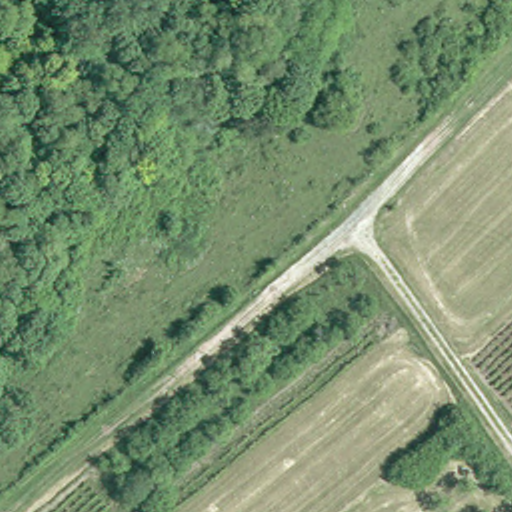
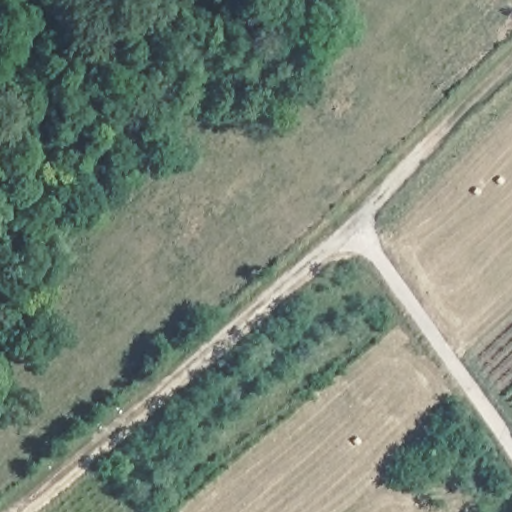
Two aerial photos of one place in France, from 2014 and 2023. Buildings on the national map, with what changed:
unchanged [(152,512),(137,512),(149,502),(155,509),(152,512)]

